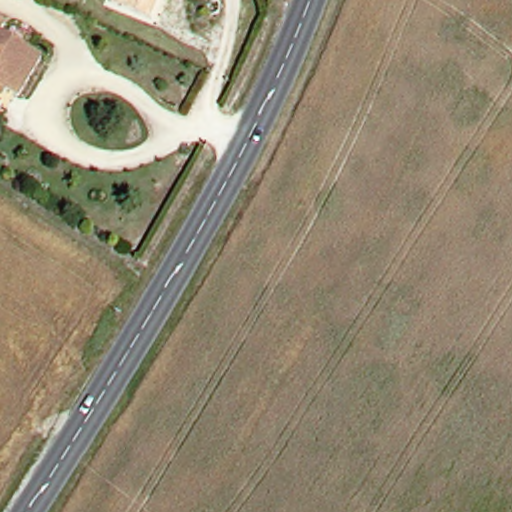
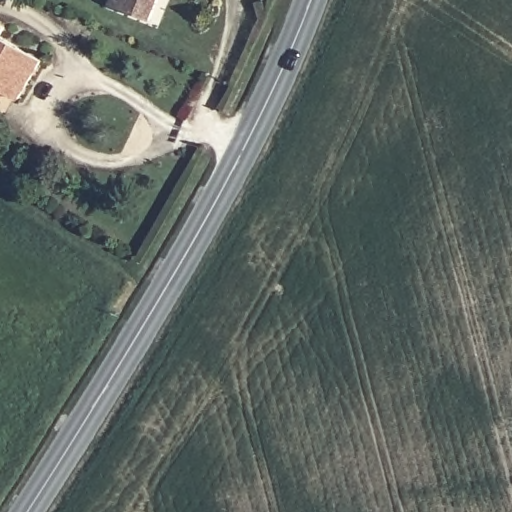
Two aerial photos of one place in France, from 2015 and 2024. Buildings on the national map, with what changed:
unchanged [(106,6),(109,0),(149,0),(140,22),(106,6)]
unchanged [(12,108),(0,100),(0,43),(36,66),(12,108)]

